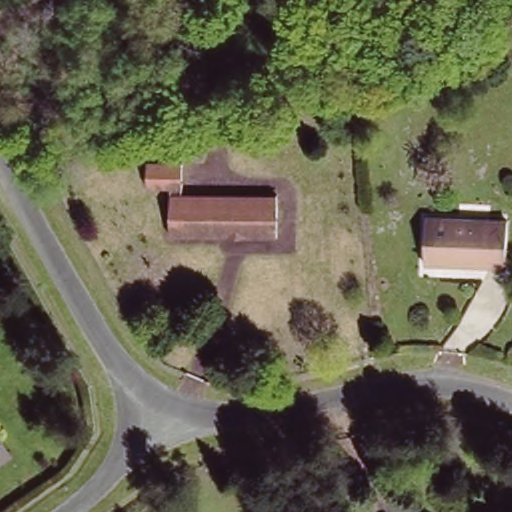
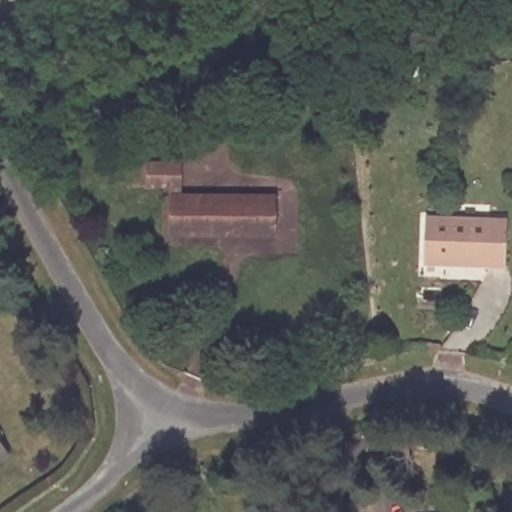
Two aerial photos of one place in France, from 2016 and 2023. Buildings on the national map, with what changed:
unchanged [(377,81),(380,110),(366,112),(363,83),(377,81)]
unchanged [(166,178),(143,177),(143,151),(178,151),(178,189),(274,188),(275,235),(166,238),(166,178)]
unchanged [(433,220),(503,224),(501,265),(431,262),(433,220)]
unchanged [(0,444),(5,452),(0,455),(0,444)]

